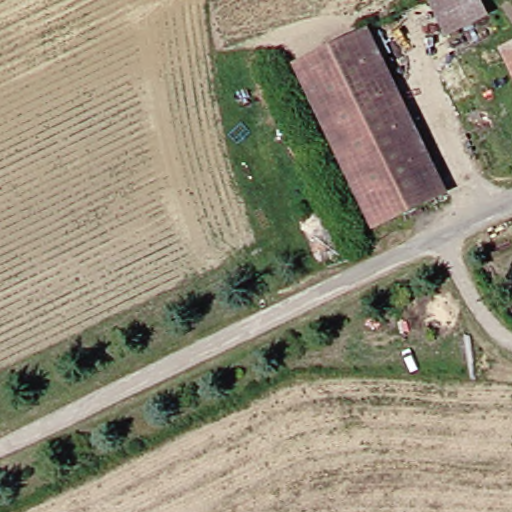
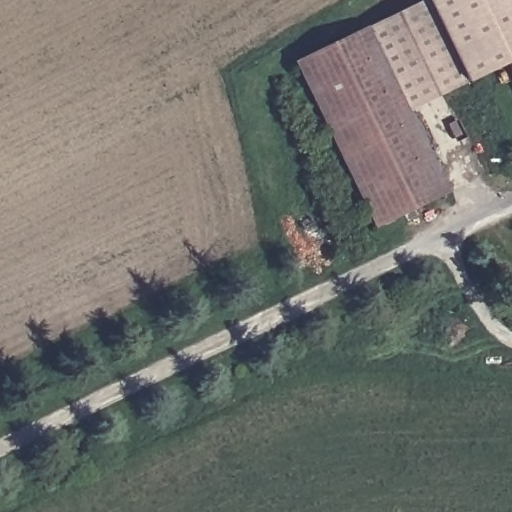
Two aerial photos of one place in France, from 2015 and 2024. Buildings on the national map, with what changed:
demolished [(430,1),(433,0),(478,0),(484,15),(447,33),(430,1)]
new [(506,51),(511,63),(467,84),(447,33),(430,1),(433,0),(512,0),(512,49),(506,51)]
new [(430,1),(447,33),(467,84),(406,113),(366,33),(430,1)]
unchanged [(375,227),(297,68),(366,33),(445,192),(375,227)]
unchanged [(506,51),(512,49),(512,63),(506,51)]

